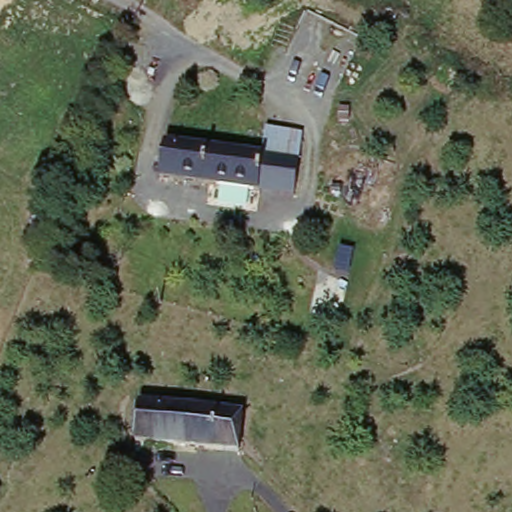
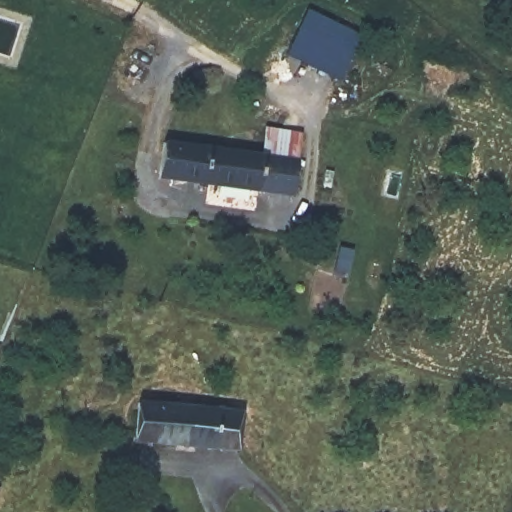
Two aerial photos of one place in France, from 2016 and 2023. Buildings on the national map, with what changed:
new [(310,12),(356,35),(343,81),(288,57),(310,12)]
unchanged [(265,151),(268,122),(306,127),(297,199),(161,184),(165,140),(265,151)]
unchanged [(246,405),(242,443),(138,433),(141,396),(246,405)]
unchanged [(0,496),(0,492),(1,492),(0,496)]

